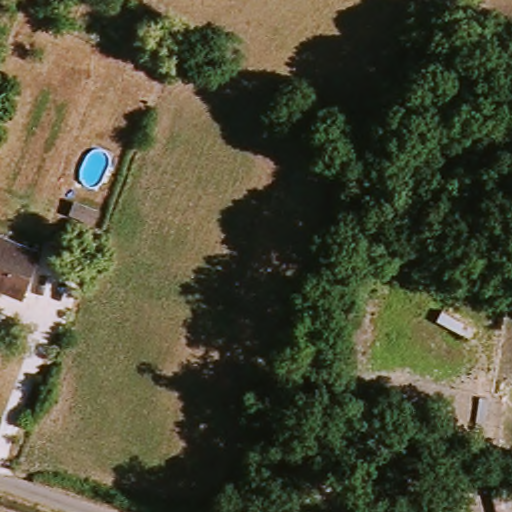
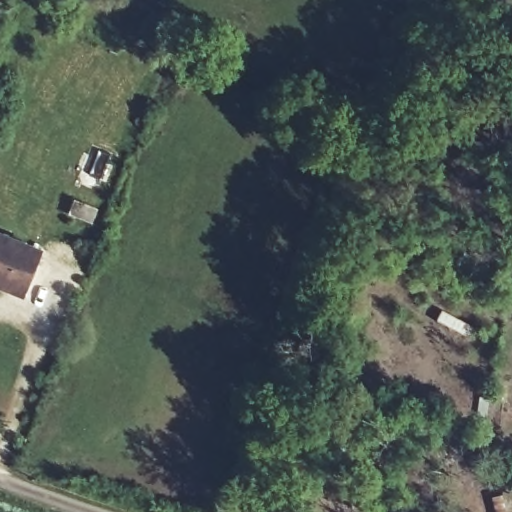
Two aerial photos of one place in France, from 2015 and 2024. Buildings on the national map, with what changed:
unchanged [(23,288),(0,280),(0,238),(38,251),(33,265),(23,288)]

